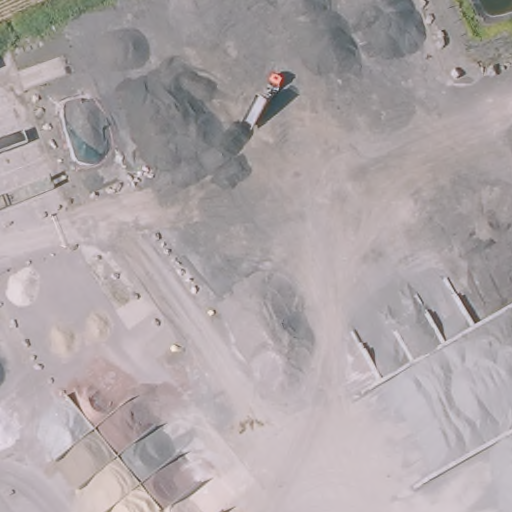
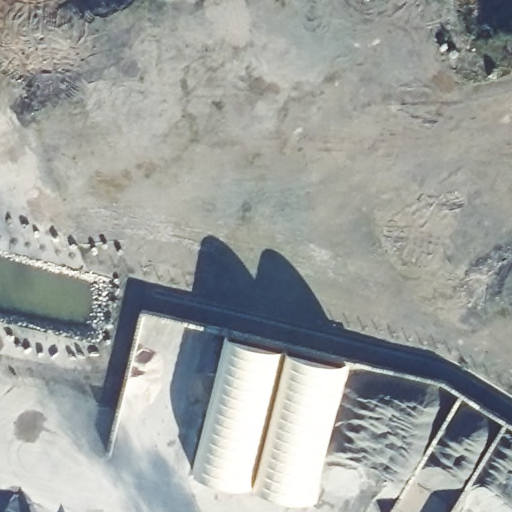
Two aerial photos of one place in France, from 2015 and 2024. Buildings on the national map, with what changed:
new [(346,368),(314,501),(193,472),(226,339),(346,368)]

